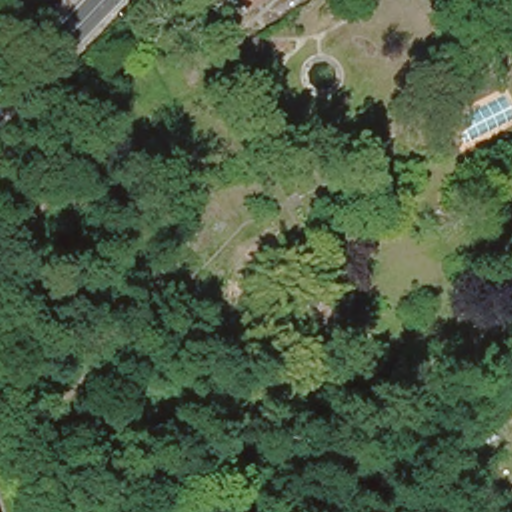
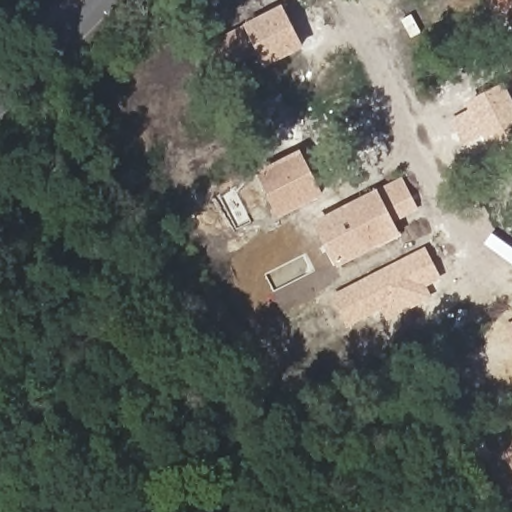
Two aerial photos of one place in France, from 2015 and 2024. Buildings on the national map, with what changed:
demolished [(241,0),(258,0),(245,8),(241,0)]
unchanged [(503,0),(512,0),(512,5),(506,7),(503,0)]
new [(305,50),(264,69),(230,85),(210,42),(244,25),(283,6),(305,50)]
new [(491,152),(482,140),(481,139),(465,145),(451,120),(469,111),(465,105),(504,85),(512,100),(512,143),(491,152)]
new [(280,220),(258,174),(301,151),(325,196),(280,220)]
new [(402,178),(419,210),(394,222),(401,236),(337,269),(311,222),(376,190),(402,178)]
new [(441,280),(426,287),(432,298),(387,321),(382,310),(350,325),(332,295),(425,247),(441,280)]
new [(512,323),(512,344),(503,327),(512,323)]

